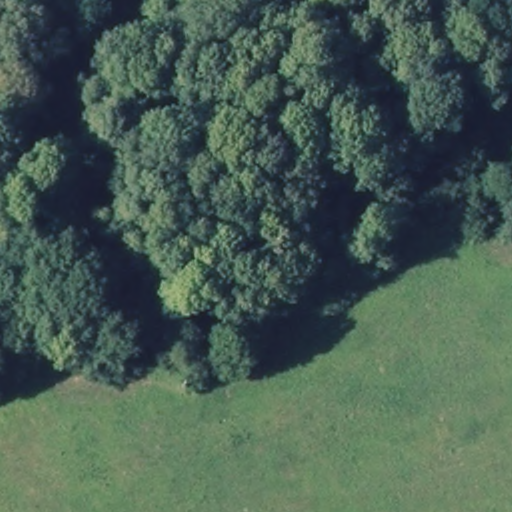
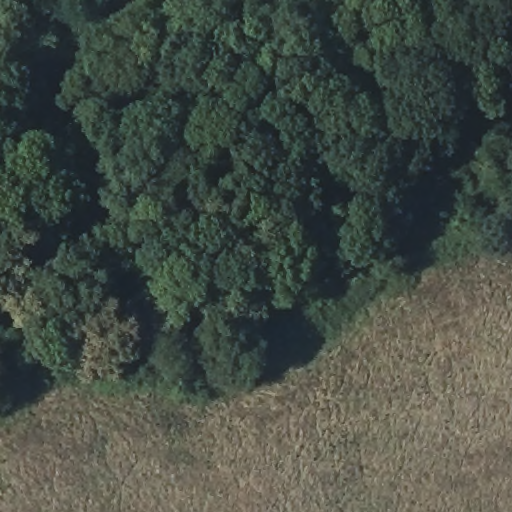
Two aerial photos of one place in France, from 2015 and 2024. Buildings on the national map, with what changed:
[]

